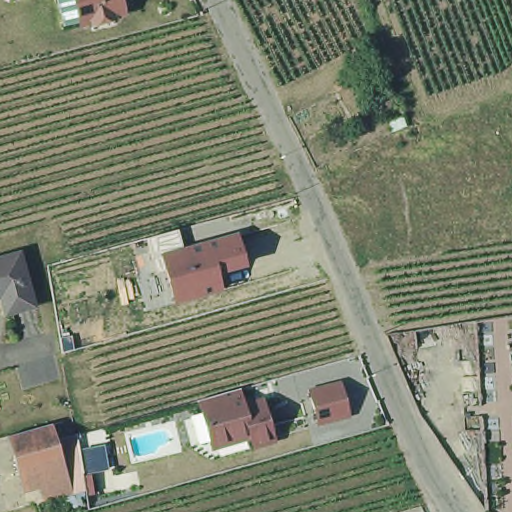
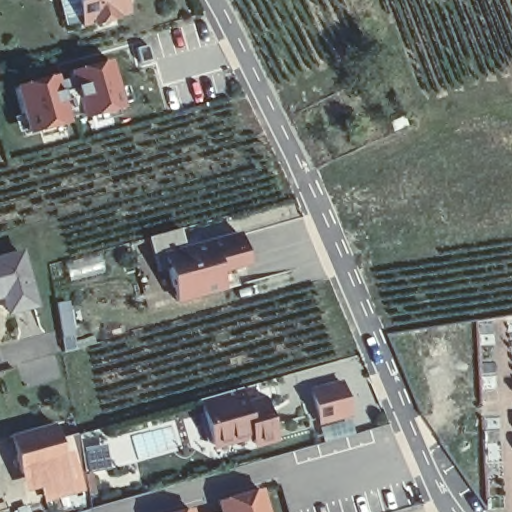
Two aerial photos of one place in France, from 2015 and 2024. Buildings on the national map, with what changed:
unchanged [(123,19),(115,21),(115,24),(92,30),(91,27),(82,30),(74,0),(119,0),(123,19)]
new [(63,74),(112,60),(125,109),(77,122),(63,74)]
new [(13,87),(63,74),(77,122),(27,136),(13,87)]
unchanged [(247,268),(220,275),(223,292),(175,305),(165,270),(155,273),(145,237),(178,229),(183,247),(237,233),(247,268)]
unchanged [(33,301),(7,308),(2,290),(0,291),(0,253),(20,248),(33,301)]
unchanged [(341,388),(349,419),(318,427),(310,396),(341,388)]
unchanged [(250,411),(268,406),(278,442),(257,448),(255,438),(217,449),(204,405),(245,393),(250,411)]
unchanged [(50,494),(46,480),(42,464),(25,469),(13,430),(27,427),(57,418),(72,472),(77,486),(50,494)]
new [(265,487),(271,512),(220,512),(217,500),(265,487)]
new [(196,512),(173,512),(195,506),(196,512)]

